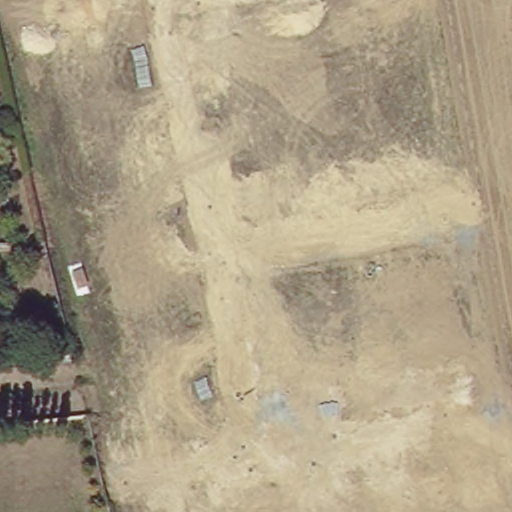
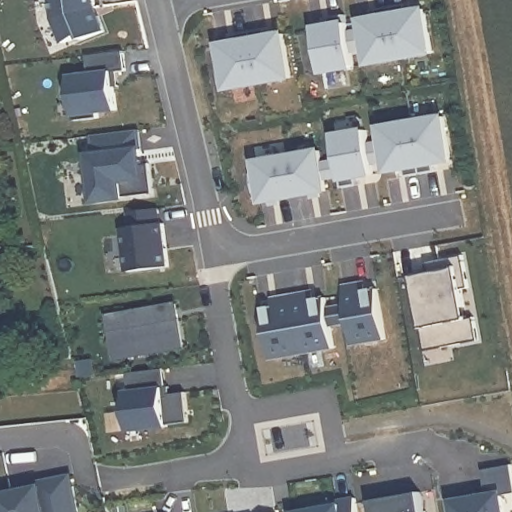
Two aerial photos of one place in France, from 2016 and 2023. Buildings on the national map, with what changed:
new [(105,31),(84,39),(83,35),(65,42),(53,18),(52,0),(95,0),(96,7),(105,31)]
new [(413,3),(414,11),(409,12),(425,9),(433,52),(401,58),(392,7),(407,4),(413,3)]
new [(401,58),(370,64),(362,21),(379,17),(377,9),(392,7),(401,58)]
new [(371,10),(377,9),(379,17),(373,19),(371,10)]
new [(331,26),(330,17),(346,15),(355,66),(322,72),(315,28),(331,26)]
new [(272,27),(273,36),(267,37),(266,28),(272,27)]
new [(266,28),(267,37),(284,34),(291,78),(260,83),(251,31),(266,28)]
new [(231,43),(230,35),(236,34),(251,31),(260,83),(228,88),(221,45),(237,42),(231,43)]
new [(126,70),(113,72),(117,109),(99,112),(99,117),(75,120),(70,76),(89,74),(87,55),(124,51),(126,70)]
new [(443,117),(451,159),(434,163),(436,171),(406,176),(405,168),(388,171),(380,127),(443,117)]
new [(95,155),(93,135),(138,130),(141,151),(140,151),(142,164),(150,163),(154,193),(96,200),(90,155),(95,155)]
new [(366,130),(373,173),(357,176),(358,185),(342,187),(333,136),(366,130)]
new [(318,151),(320,162),(330,161),(333,178),(324,179),(326,190),(264,201),(262,190),(253,191),(250,175),(259,174),(256,161),(318,151)]
new [(158,208),(160,223),(164,222),(169,266),(128,271),(123,227),(131,226),(129,211),(158,208)]
new [(424,333),(412,275),(431,272),(429,272),(428,262),(439,260),(464,255),(471,288),(463,289),(469,319),(476,317),(481,340),(444,348),(427,351),(424,333)]
new [(361,283),(362,291),(379,289),(387,339),(355,344),(345,285),(361,283)]
new [(281,306),(279,298),(309,293),(310,300),(327,298),(336,348),(272,358),(264,309),(281,306)]
new [(114,347),(109,316),(176,304),(183,346),(162,350),(116,358),(114,347)]
new [(164,368),(166,387),(166,388),(164,388),(165,397),(170,396),(170,394),(186,392),(189,422),(168,425),(168,426),(129,431),(125,392),(130,391),(127,373),(164,368)]
new [(166,388),(166,387),(170,386),(171,394),(170,394),(170,396),(165,397),(164,388),(166,388)]
new [(477,493),(478,499),(488,497),(484,470),(512,465),(512,494),(503,496),(506,512),(458,512),(455,497),(477,493)]
new [(0,506),(1,506),(0,501),(0,490),(16,486),(40,481),(72,475),(80,512),(0,512),(0,506)]
new [(422,492),(425,512),(374,512),(372,500),(422,492)]
new [(311,510),(310,506),(356,498),(358,512),(300,512),(311,510)]
new [(0,506),(0,500),(1,506),(0,506)]

